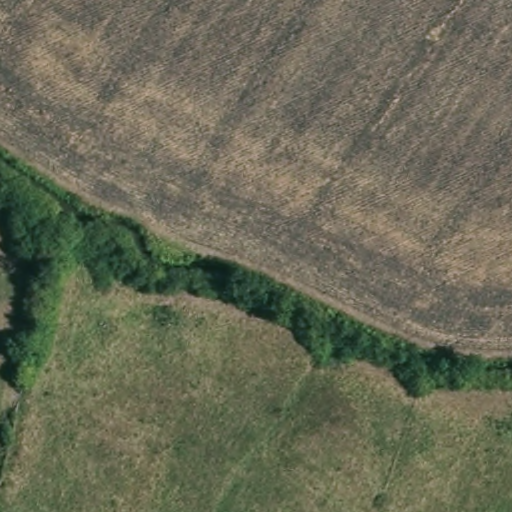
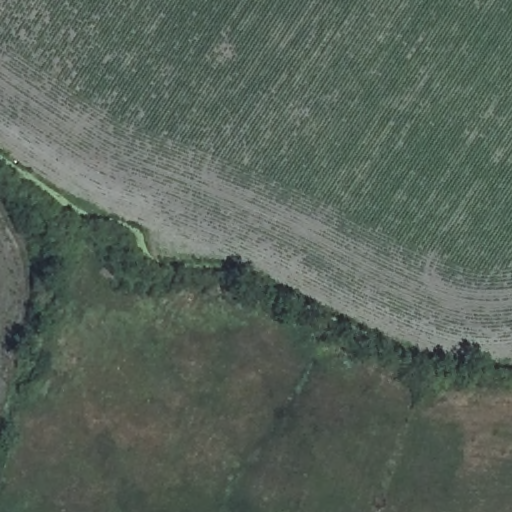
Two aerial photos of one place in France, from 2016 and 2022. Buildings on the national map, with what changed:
[]

